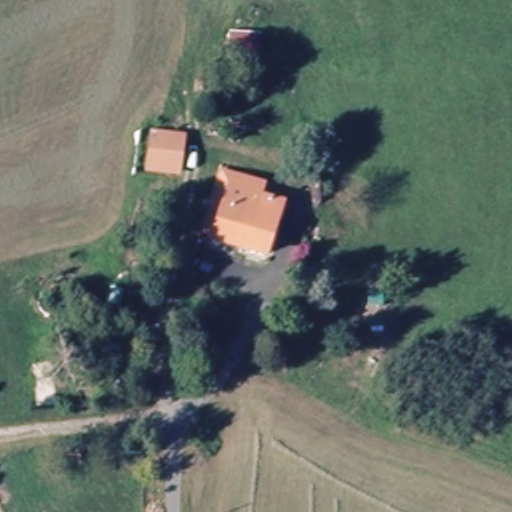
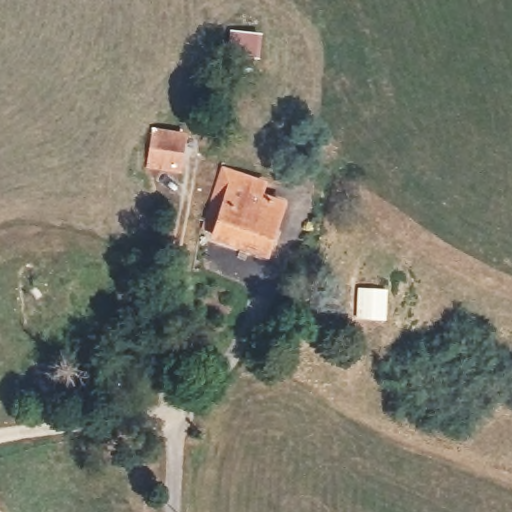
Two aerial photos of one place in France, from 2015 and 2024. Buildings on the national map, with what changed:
unchanged [(153,160),(166,129),(194,140),(181,172),(153,160)]
unchanged [(272,255),(218,235),(220,229),(205,224),(222,185),(224,186),(229,172),(271,189),(266,201),(289,210),(272,255)]

